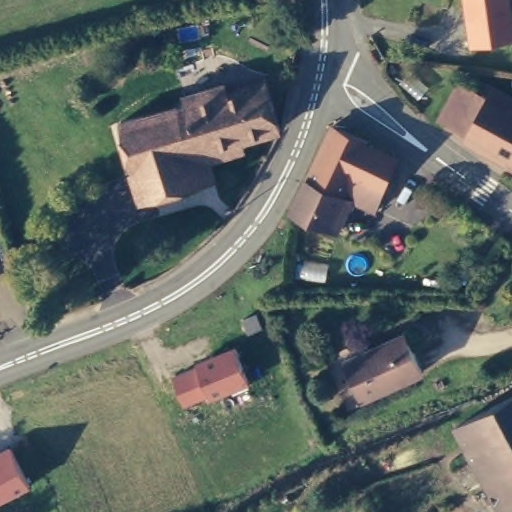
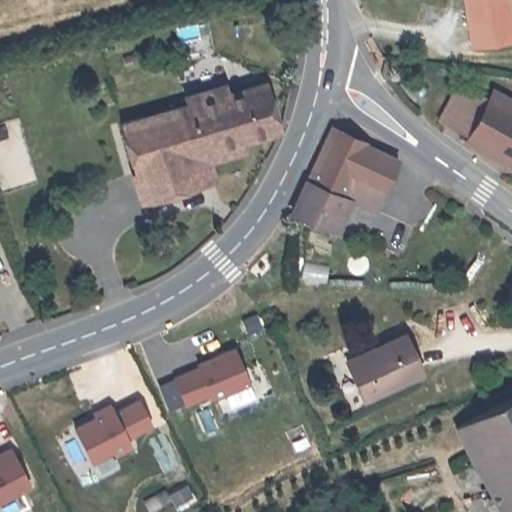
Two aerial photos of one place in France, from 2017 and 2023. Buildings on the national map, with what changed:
unchanged [(512,43),(473,48),(466,0),(509,0),(512,23),(512,43)]
unchanged [(474,136),(467,131),(468,130),(453,121),(473,87),(489,97),(489,95),(497,100),(504,104),(507,97),(512,101),(512,166),(472,141),(474,137),(474,136)]
unchanged [(246,146),(244,149),(194,162),(201,190),(144,206),(123,128),(188,111),(186,101),(229,89),(231,96),(233,100),(271,89),(276,137),(246,146)]
unchanged [(188,111),(123,128),(118,110),(183,91),(186,101),(188,111)]
unchanged [(348,195),(331,227),(291,207),(335,122),(369,141),(367,145),(395,162),(381,189),(371,207),(348,195)]
unchanged [(410,327),(424,366),(363,390),(349,350),(410,327)]
unchanged [(250,383),(211,400),(208,395),(183,405),(171,375),(196,365),(196,361),(234,346),(250,383)]
unchanged [(512,512),(509,512),(463,421),(512,396),(512,512)]
new [(73,427),(93,416),(90,411),(108,401),(113,410),(138,397),(152,425),(127,438),(132,448),(113,457),(110,453),(90,462),(73,427)]
unchanged [(10,445),(32,487),(0,503),(0,451),(10,445)]

